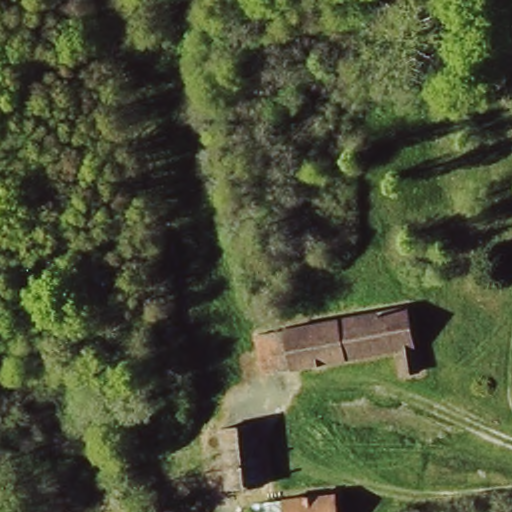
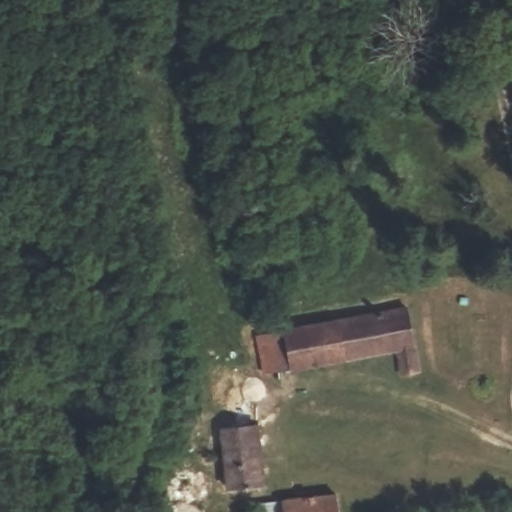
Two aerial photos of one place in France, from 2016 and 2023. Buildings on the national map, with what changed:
unchanged [(297,324),(407,302),(420,363),(405,367),(400,344),(270,372),(263,331),(297,324)]
unchanged [(253,426),(264,485),(235,490),(226,445),(223,433),(253,426)]
unchanged [(336,490),(340,512),(286,512),(284,499),(336,490)]

